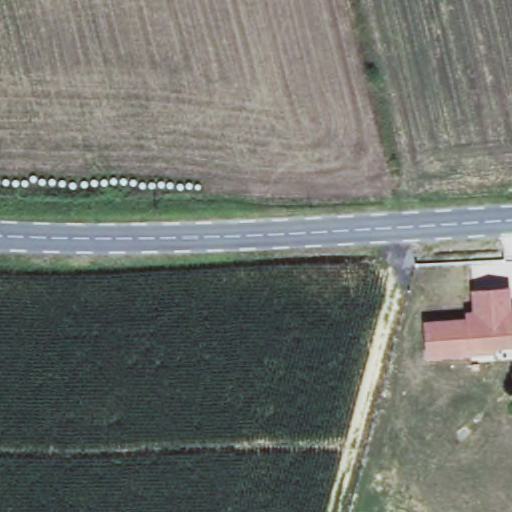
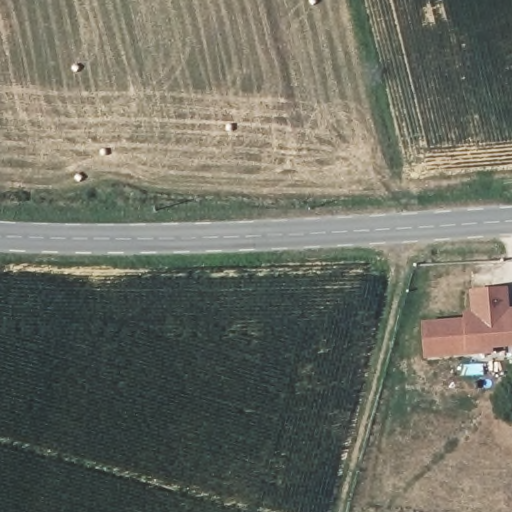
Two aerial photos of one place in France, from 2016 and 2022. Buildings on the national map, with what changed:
unchanged [(493,351),(493,356),(423,360),(422,323),(464,320),(463,314),(470,313),(469,292),(508,288),(510,309),(512,309),(512,349),(493,351)]

